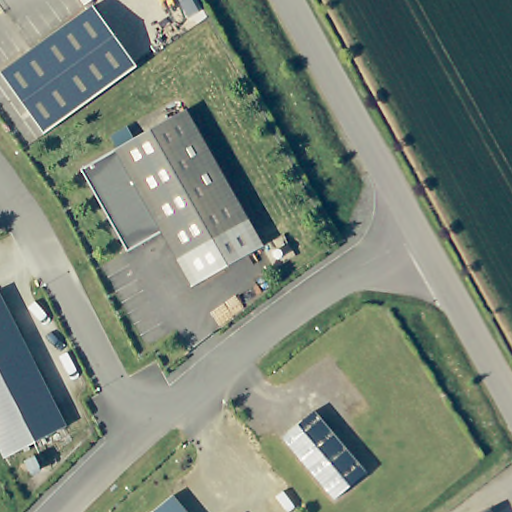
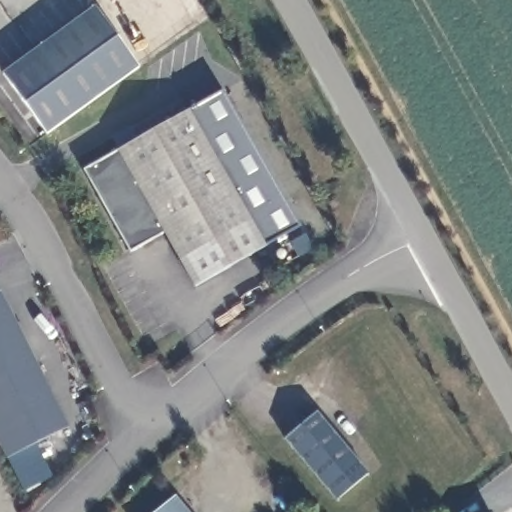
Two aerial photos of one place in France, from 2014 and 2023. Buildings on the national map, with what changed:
unchanged [(9,75),(102,9),(145,70),(51,136),(9,75)]
new [(192,113),(226,94),(300,226),(266,243),(192,113)]
unchanged [(116,139),(134,129),(141,141),(192,113),(270,249),(200,289),(169,235),(135,254),(87,172),(124,151),(116,139)]
unchanged [(72,429),(11,459),(0,436),(0,295),(5,293),(72,429)]
unchanged [(367,473),(335,500),(285,437),(315,410),(367,473)]
unchanged [(176,497),(188,512),(157,512),(176,497)]
unchanged [(494,512),(491,512),(493,511),(494,512)]

